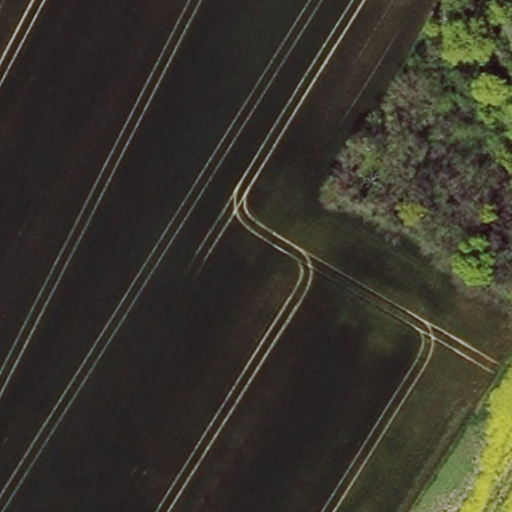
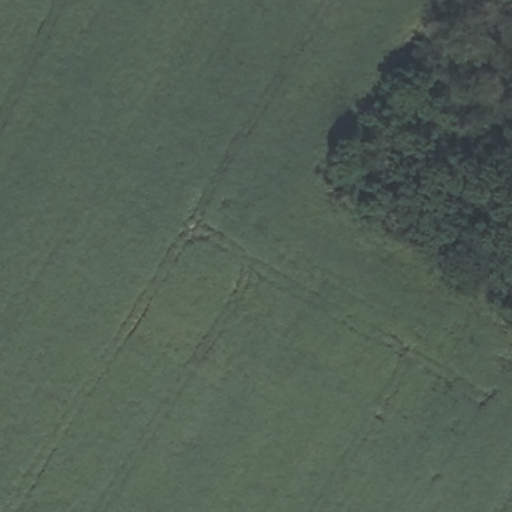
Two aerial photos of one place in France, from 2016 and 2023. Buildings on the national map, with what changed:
[]

